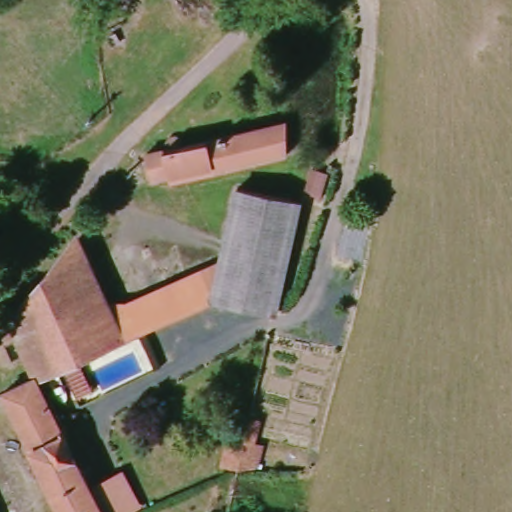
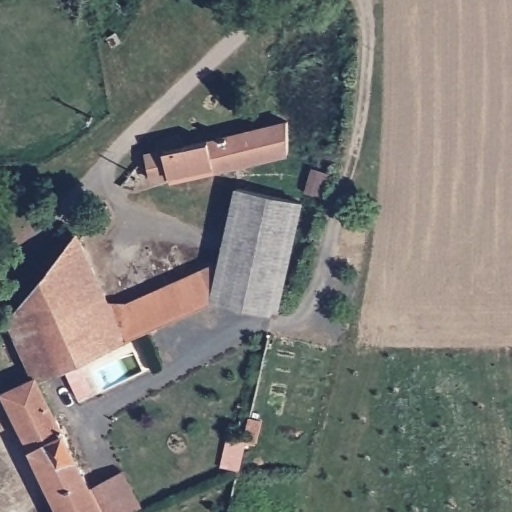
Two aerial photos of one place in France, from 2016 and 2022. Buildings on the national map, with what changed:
unchanged [(131,42),(123,47),(118,39),(127,33),(131,42)]
unchanged [(282,120),(285,157),(210,171),(170,180),(165,172),(143,181),(137,150),(160,145),(201,137),(282,120)]
unchanged [(299,197),(304,175),(322,178),(316,201),(299,197)]
unchanged [(6,321),(77,236),(109,307),(209,268),(229,192),(299,207),(271,318),(210,304),(34,381),(6,321)]
unchanged [(34,381),(87,490),(120,475),(138,510),(133,512),(53,512),(0,401),(0,396),(34,381)]

